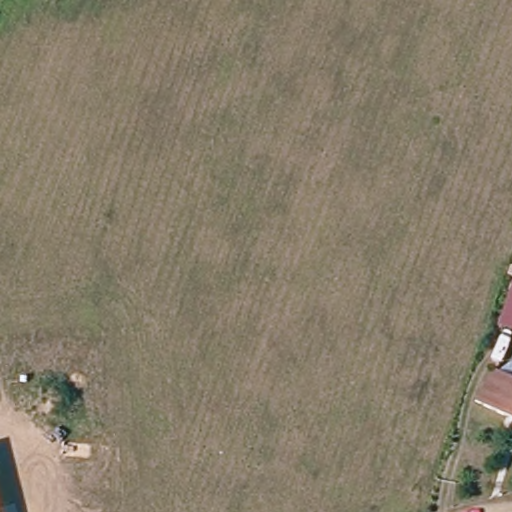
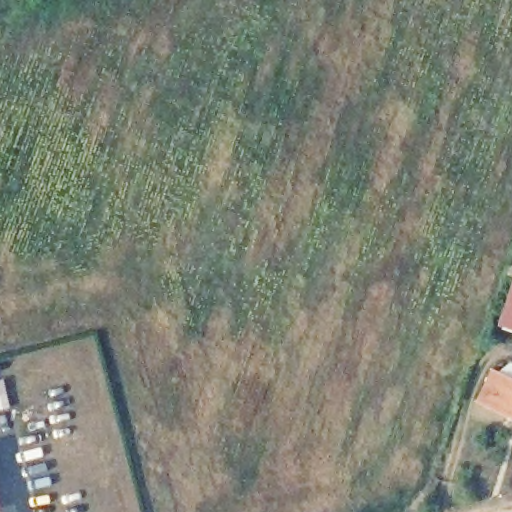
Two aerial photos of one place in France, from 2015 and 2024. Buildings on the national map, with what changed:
unchanged [(512,295),(505,291),(502,290),(505,284),(512,282),(512,295)]
unchanged [(506,301),(512,304),(512,350),(492,342),(506,301)]
unchanged [(495,371),(512,377),(512,416),(485,405),(495,371)]

